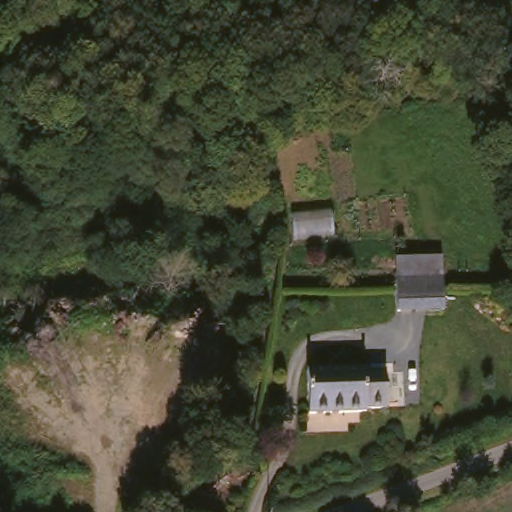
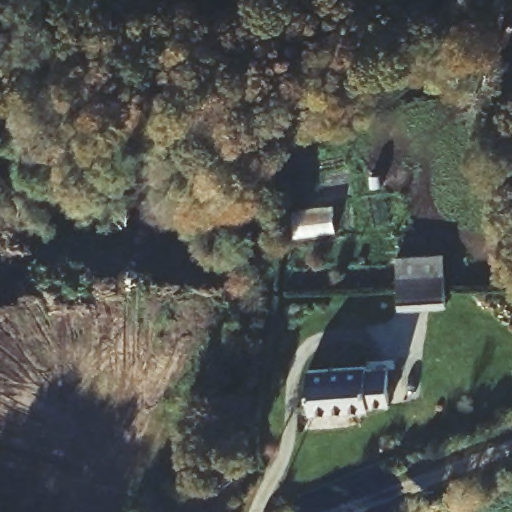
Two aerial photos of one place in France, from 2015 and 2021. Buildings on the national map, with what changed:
unchanged [(438,264),(440,295),(394,298),(393,267),(438,264)]
unchanged [(358,369),(359,371),(379,370),(381,406),(364,408),(364,411),(304,415),(301,374),(358,369)]

